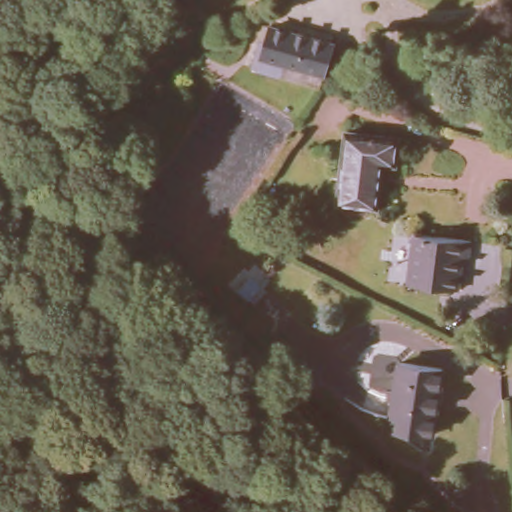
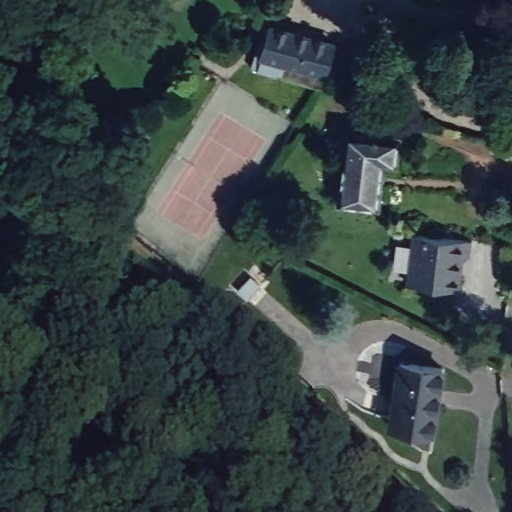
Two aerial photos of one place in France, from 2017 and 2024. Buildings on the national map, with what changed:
unchanged [(274,37),(279,21),(342,40),(334,70),(329,82),(259,62),(267,35),(274,37)]
unchanged [(345,132),(397,137),(395,162),(380,162),(376,205),(338,201),(345,132)]
unchanged [(407,283),(414,234),(472,241),(470,257),(461,256),(460,263),(457,289),(451,289),(407,283)]
unchanged [(437,370),(427,433),(384,426),(396,363),(437,370)]

